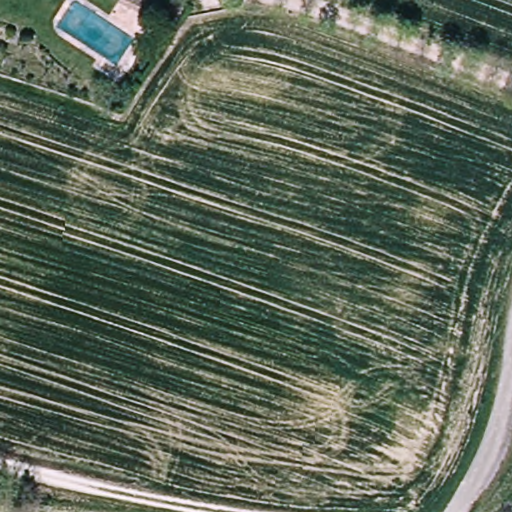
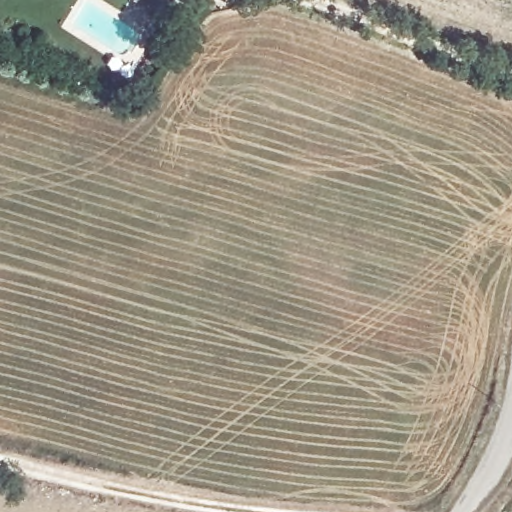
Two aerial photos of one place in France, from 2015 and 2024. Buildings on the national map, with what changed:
unchanged [(127,0),(173,0),(175,1),(159,29),(143,19),(146,10),(127,0)]

